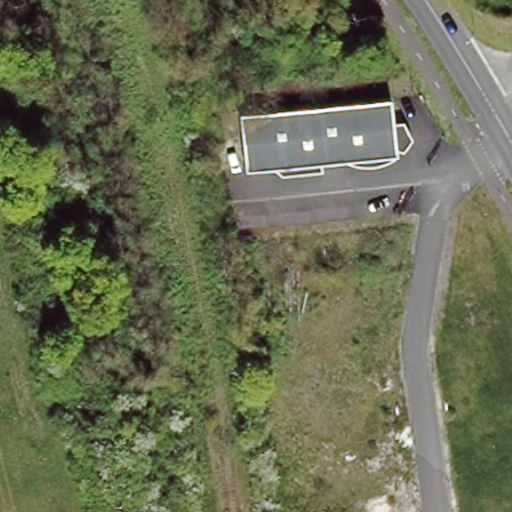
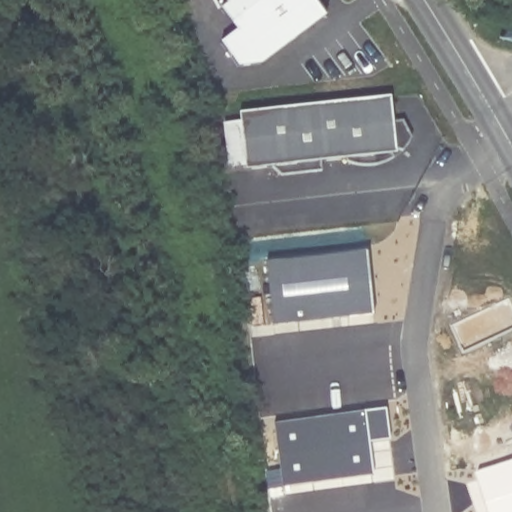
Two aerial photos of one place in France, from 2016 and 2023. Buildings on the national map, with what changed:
new [(232,0),(316,0),(327,15),(265,63),(240,66),(222,42),(249,23),(232,0)]
unchanged [(389,96),(415,131),(395,152),(375,161),(356,160),(344,153),(320,155),(321,165),(278,170),(277,161),(240,162),(235,105),(389,96)]
new [(370,254),(377,315),(276,325),(270,264),(370,254)]
new [(388,410),(392,441),(371,443),(375,476),(285,486),(277,424),(388,410)]
new [(512,512),(490,512),(477,474),(512,463),(512,512)]

